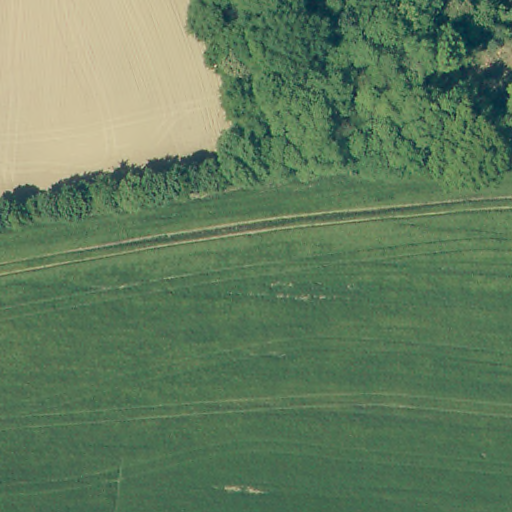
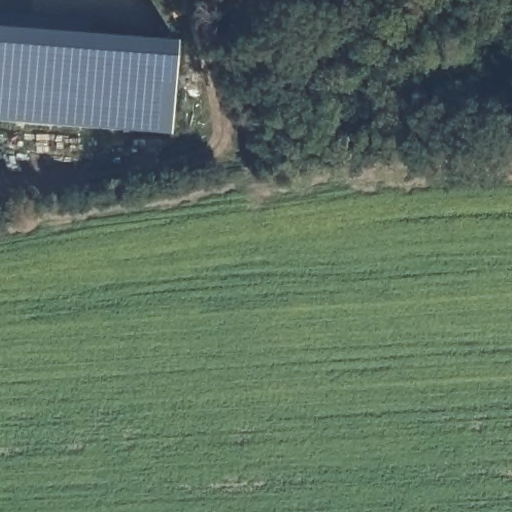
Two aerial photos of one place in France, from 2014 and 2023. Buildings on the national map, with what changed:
new [(171,42),(178,42),(171,135),(0,123),(0,13),(91,19),(89,34),(143,38),(145,19),(174,22),(171,42)]

